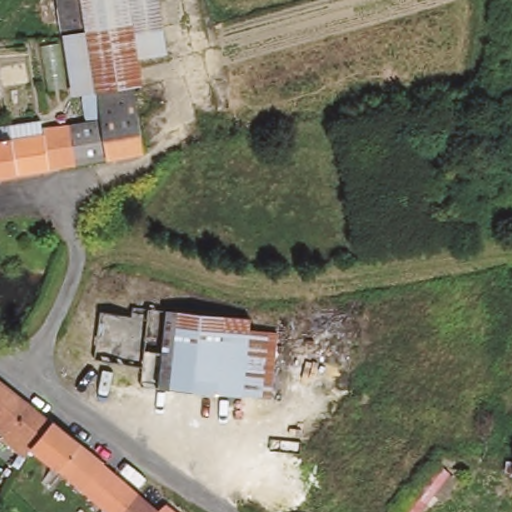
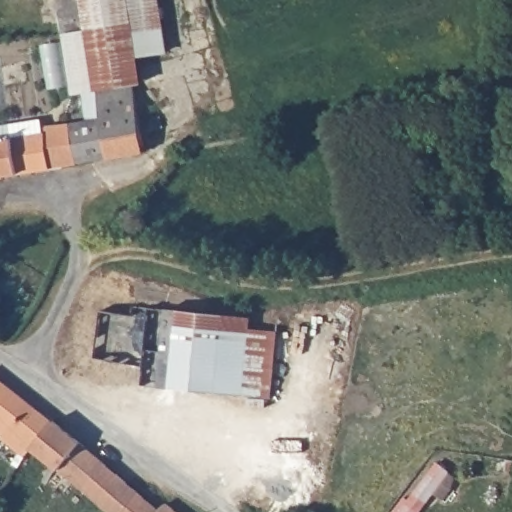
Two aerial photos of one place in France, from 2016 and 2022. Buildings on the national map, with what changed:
unchanged [(72,97),(63,39),(65,39),(58,0),(158,0),(168,56),(138,60),(141,86),(134,87),(144,154),(50,173),(50,170),(0,177),(0,128),(42,122),(43,129),(85,123),(81,96),(72,97)]
unchanged [(96,345),(100,311),(131,316),(133,308),(136,308),(146,309),(251,319),(250,330),(276,332),(269,400),(141,389),(142,369),(79,358),(83,343),(96,345)]
unchanged [(49,422),(27,450),(20,459),(17,457),(0,443),(0,382),(49,422)]
unchanged [(76,444),(54,472),(27,450),(49,422),(76,444)]
unchanged [(134,492),(118,512),(102,512),(54,472),(76,444),(134,492)]
unchanged [(416,512),(392,512),(404,498),(408,500),(432,468),(444,476),(416,512)]
unchanged [(159,512),(164,506),(172,512),(118,512),(134,492),(159,512)]

